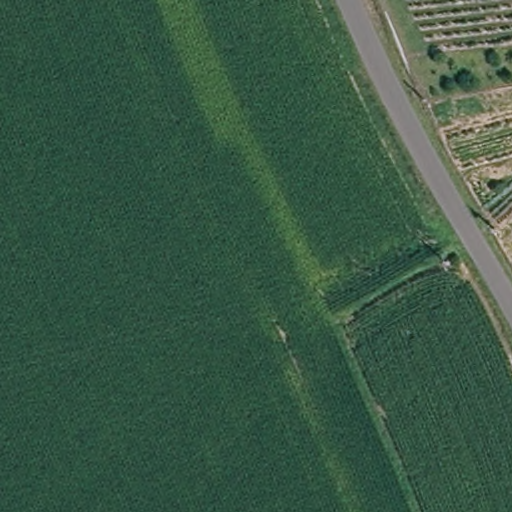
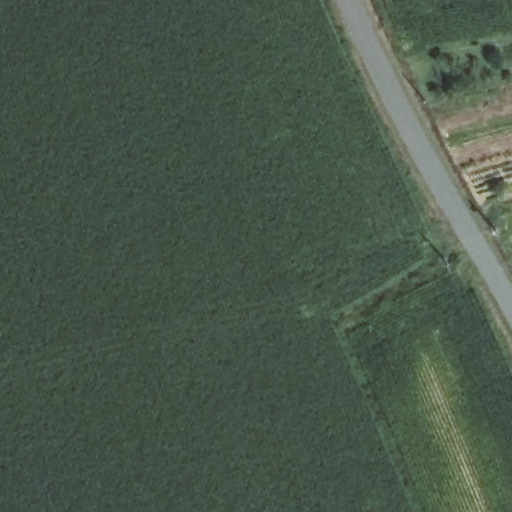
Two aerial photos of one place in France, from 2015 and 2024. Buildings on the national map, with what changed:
[]

